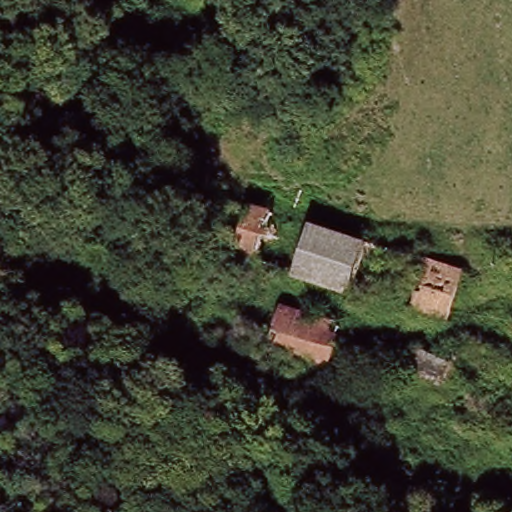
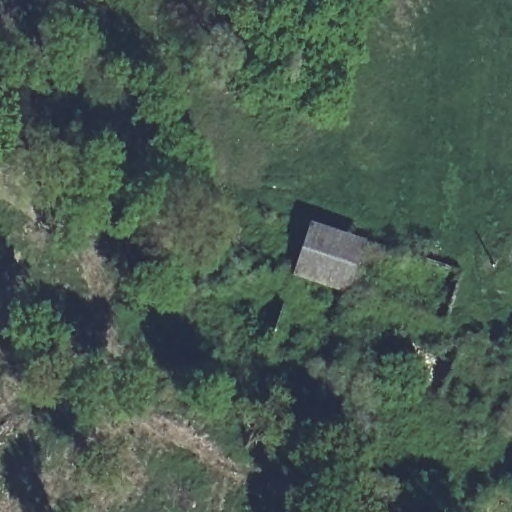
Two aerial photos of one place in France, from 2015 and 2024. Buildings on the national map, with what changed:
unchanged [(301,279),(312,228),(365,242),(353,292),(301,279)]
unchanged [(453,320),(353,292),(365,242),(384,247),(456,266),(467,268),(460,296),(453,320)]
unchanged [(453,401),(463,368),(468,350),(471,332),(512,347),(512,430),(451,408),(453,401)]
unchanged [(418,391),(428,359),(463,368),(453,401),(418,391)]

